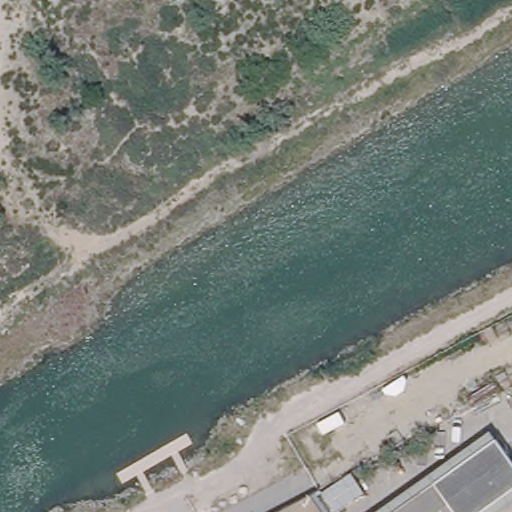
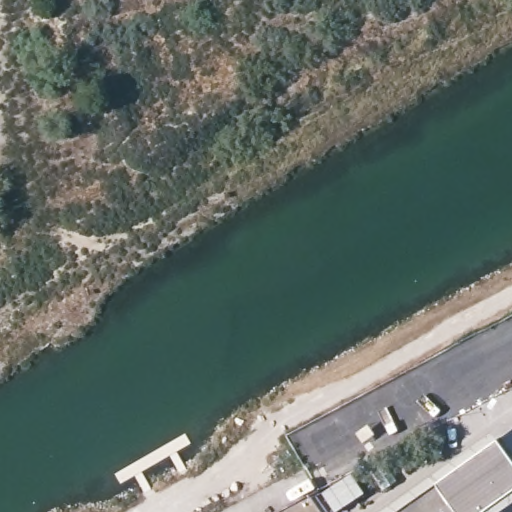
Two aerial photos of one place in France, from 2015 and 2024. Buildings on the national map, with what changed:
unchanged [(512,453),(512,496),(491,512),(450,512),(427,482),(496,431),(512,453)]
unchanged [(450,512),(387,512),(427,482),(450,512)]
unchanged [(309,490),(324,512),(265,512),(292,498),(309,490)]

